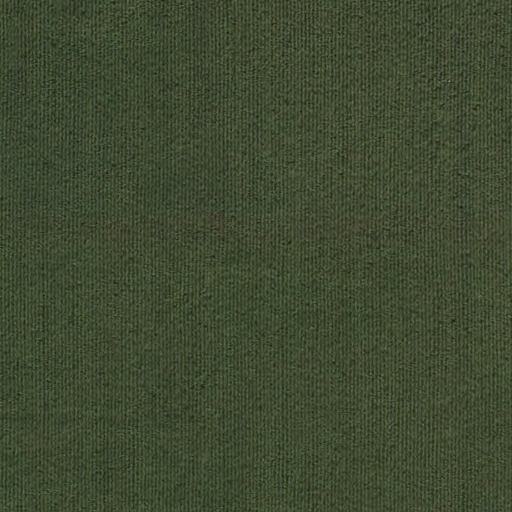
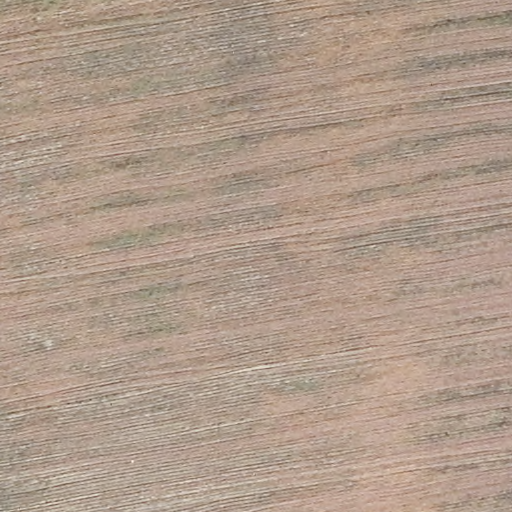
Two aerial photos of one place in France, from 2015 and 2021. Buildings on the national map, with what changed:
[]

